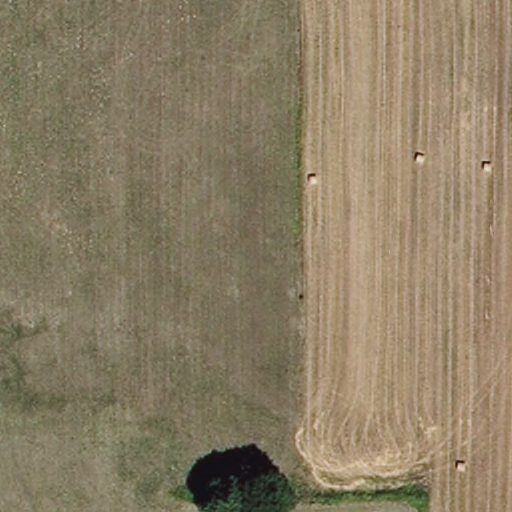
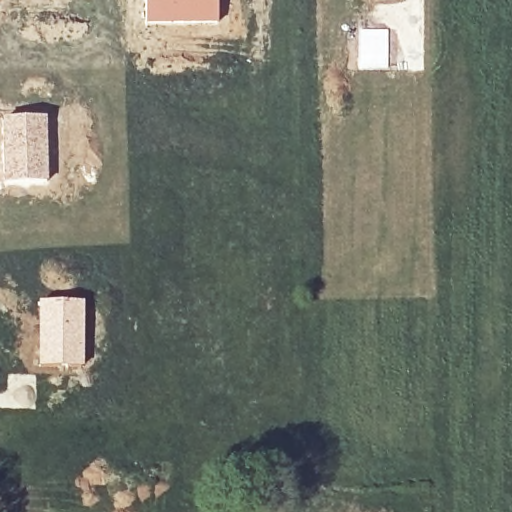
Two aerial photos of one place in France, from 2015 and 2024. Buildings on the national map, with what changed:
new [(219,22),(146,25),(146,0),(219,0),(219,22)]
new [(47,116),(49,182),(3,183),(1,118),(47,116)]
new [(84,300),(85,366),(39,367),(36,300),(84,300)]

